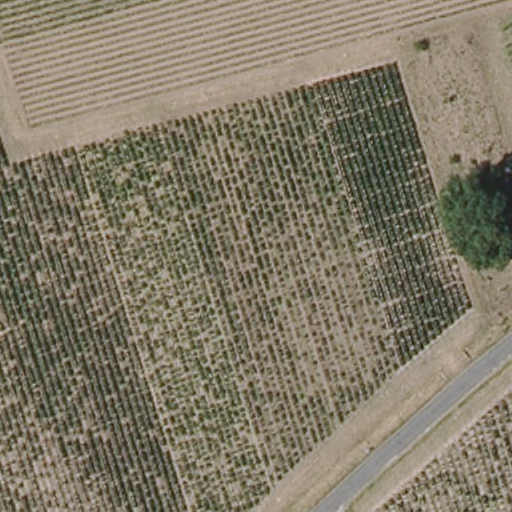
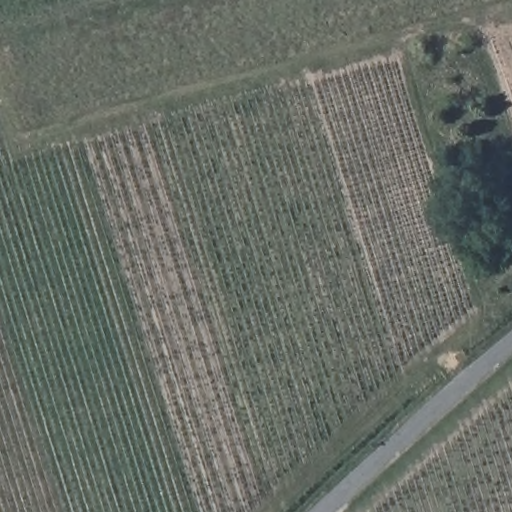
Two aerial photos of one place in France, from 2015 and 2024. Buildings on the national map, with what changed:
[]

